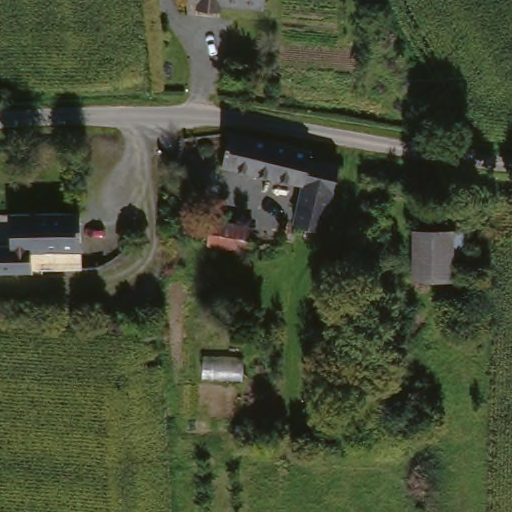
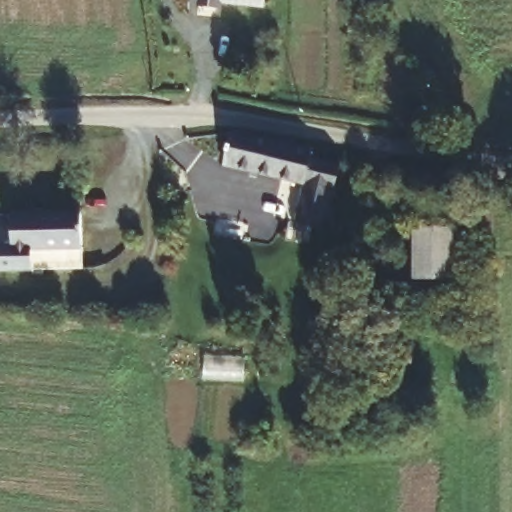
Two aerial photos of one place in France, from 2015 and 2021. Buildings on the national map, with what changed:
unchanged [(227,13),(201,11),(202,0),(266,0),(265,11),(228,8),(227,13)]
unchanged [(311,160),(305,183),(223,164),(228,143),(230,132),(314,150),(311,160)]
unchanged [(342,168),(325,237),(293,229),(305,183),(311,160),(342,168)]
unchanged [(36,272),(0,273),(0,249),(15,248),(14,216),(88,214),(88,251),(36,254),(36,272)]
unchanged [(207,249),(212,224),(254,233),(250,257),(207,249)]
unchanged [(456,228),(457,281),(412,281),(410,231),(456,228)]

